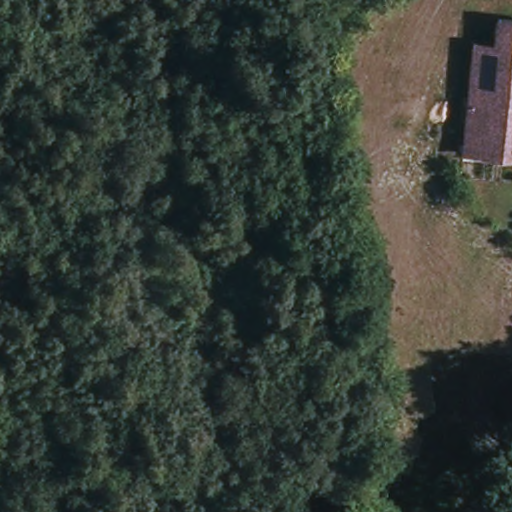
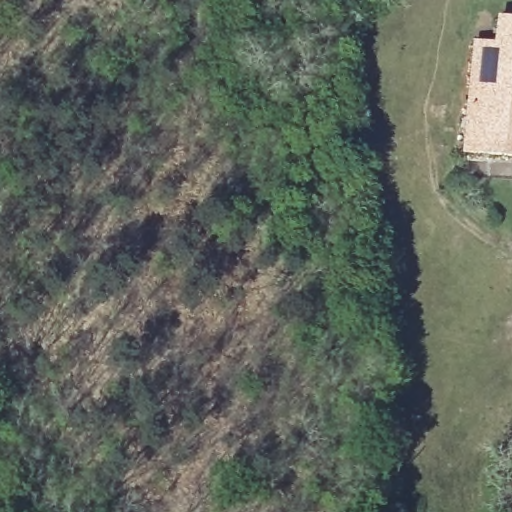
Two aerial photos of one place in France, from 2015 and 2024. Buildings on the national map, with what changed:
unchanged [(512,17),(512,156),(461,151),(469,60),(470,42),(493,43),(496,15),(512,17)]

